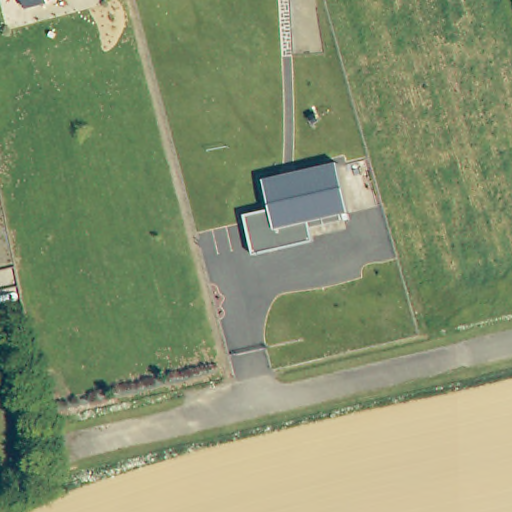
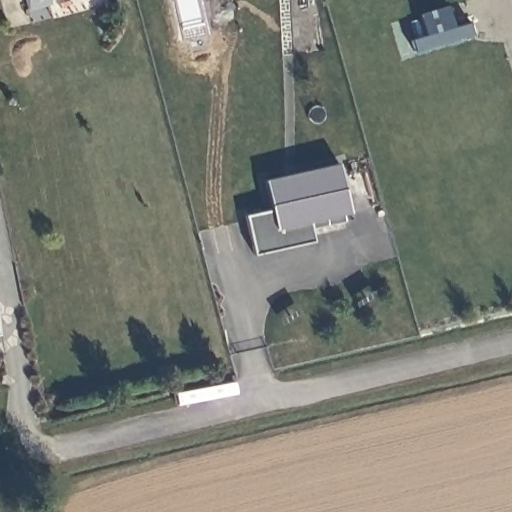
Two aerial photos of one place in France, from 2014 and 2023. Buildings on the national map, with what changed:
unchanged [(46,3),(47,8),(25,14),(24,9),(7,13),(3,0),(59,0),(46,3)]
new [(413,52),(410,40),(426,34),(420,15),(448,4),(455,27),(471,21),(474,32),(413,52)]
unchanged [(344,208),(306,218),(311,238),(251,253),(240,214),(266,207),(258,178),(332,160),(344,208)]

